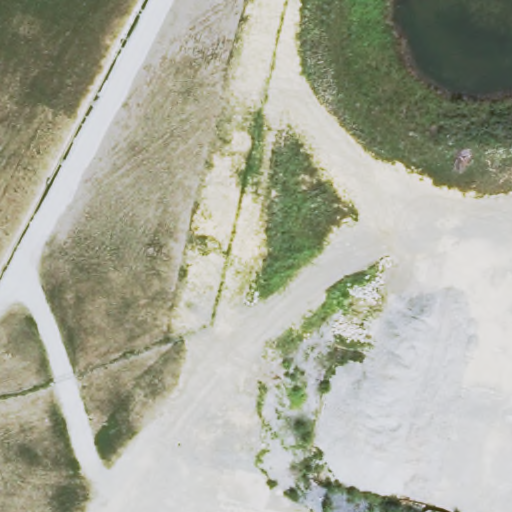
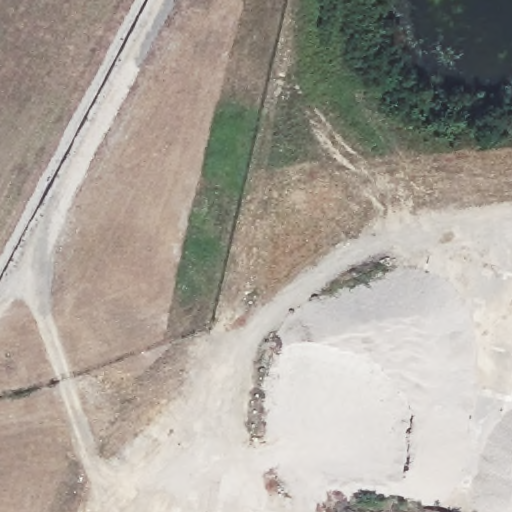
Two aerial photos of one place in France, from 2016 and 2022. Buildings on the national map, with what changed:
[]

